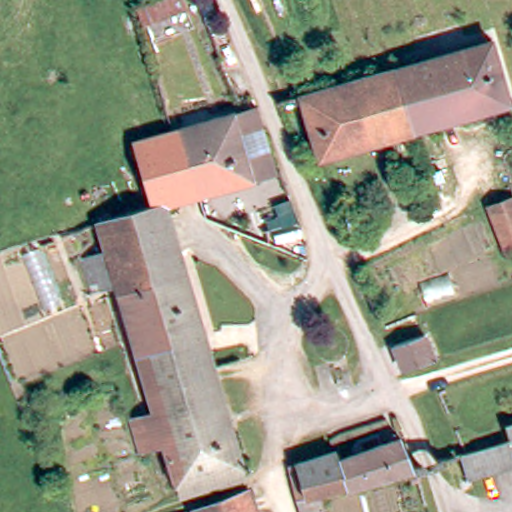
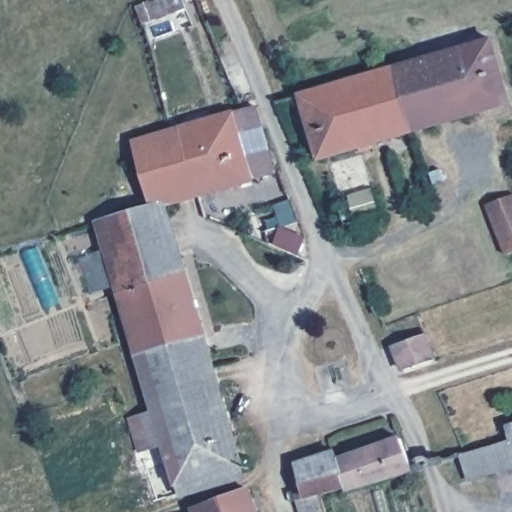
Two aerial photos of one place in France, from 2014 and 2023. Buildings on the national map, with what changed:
unchanged [(158,0),(175,0),(178,10),(150,18),(146,4),(158,0)]
unchanged [(492,36),(501,62),(512,58),(512,74),(505,79),(512,97),(512,98),(410,128),(393,66),(492,36)]
unchanged [(300,94),(393,66),(410,128),(318,155),(300,94)]
unchanged [(254,174),(197,192),(175,132),(256,107),(262,127),(275,167),(254,174)]
unchanged [(175,132),(197,192),(165,202),(162,203),(156,204),(152,205),(152,201),(149,192),(135,144),(175,132)]
unchanged [(485,204),(510,193),(512,199),(512,247),(505,250),(485,204)]
unchanged [(180,491),(175,479),(163,440),(157,442),(140,448),(127,410),(145,403),(155,400),(142,355),(125,303),(117,279),(108,282),(91,288),(80,251),(97,246),(105,243),(98,216),(152,201),(152,205),(156,204),(162,203),(240,462),(240,464),(242,472),(180,491)]
unchanged [(388,347),(420,337),(427,361),(404,367),(397,369),(388,347)]
unchanged [(503,422),(512,419),(512,464),(467,479),(458,449),(465,449),(507,437),(503,422)]
unchanged [(341,449),(400,433),(410,469),(353,485),(341,449)]
unchanged [(293,462),(302,459),(341,449),(353,485),(317,493),(327,512),(307,512),(307,495),(293,462)]
unchanged [(243,487),(255,512),(197,512),(194,503),(243,487)]

